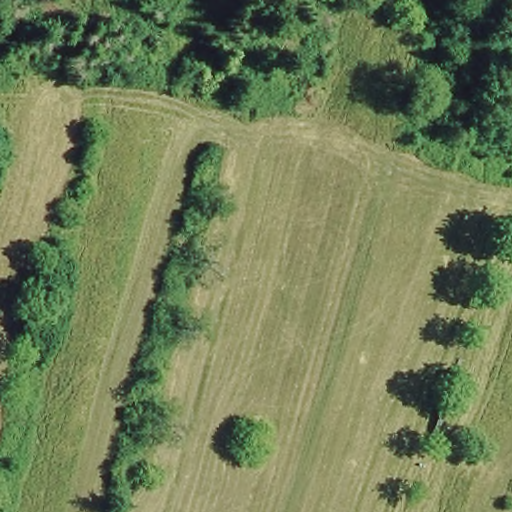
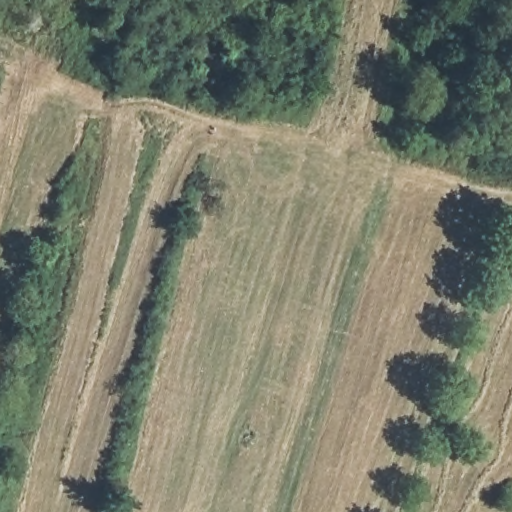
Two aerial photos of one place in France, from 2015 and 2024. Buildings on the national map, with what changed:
[]

